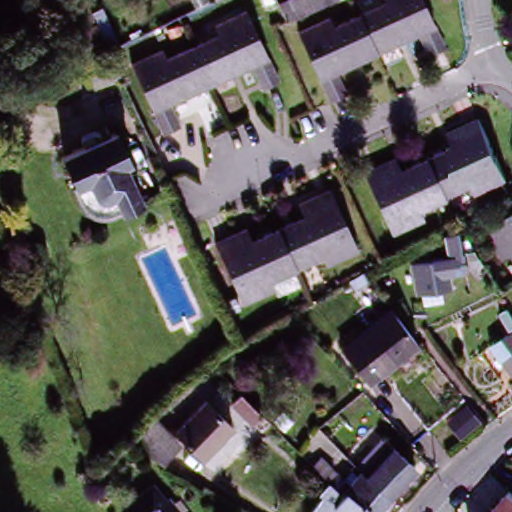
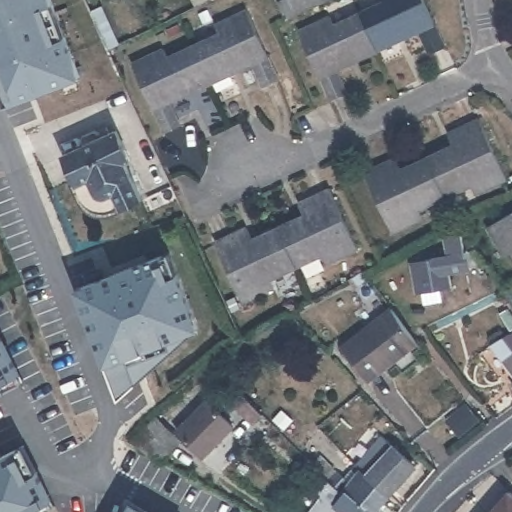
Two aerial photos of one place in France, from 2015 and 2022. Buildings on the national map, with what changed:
new [(0,95),(0,0),(51,0),(80,77),(4,105),(0,95)]
unchanged [(282,0),(327,0),(322,2),(286,19),(285,17),(278,2),(282,0)]
unchanged [(431,61),(422,38),(380,57),(360,10),(382,0),(425,0),(449,54),(431,61)]
demolished [(112,41),(105,44),(79,54),(69,30),(74,27),(68,13),(87,5),(90,11),(94,21),(97,28),(100,32),(107,29),(113,41),(112,41)]
unchanged [(248,9),(279,78),(262,85),(251,62),(210,80),(190,35),(248,9)]
unchanged [(340,75),(348,98),(332,105),(302,36),(360,10),(380,57),(340,75)]
unchanged [(190,35),(210,80),(169,97),(178,122),(162,129),(131,60),(190,35)]
unchanged [(65,149),(102,133),(99,125),(109,120),(112,129),(119,126),(131,152),(125,155),(141,193),(120,201),(121,206),(113,210),(108,211),(104,212),(100,212),(97,212),(93,211),(90,210),(87,207),(83,204),(82,201),(78,196),(68,175),(74,173),(65,149)]
unchanged [(509,180),(478,196),(473,186),(447,199),(429,161),(455,149),(450,137),(480,122),(509,180)]
unchanged [(396,162),(402,175),(429,161),(447,199),(421,211),(426,221),(393,236),(365,177),(396,162)]
unchanged [(331,190),(358,250),(327,262),(322,255),(297,267),(284,239),(279,227),(303,216),(299,205),(331,190)]
unchanged [(489,226),(512,214),(512,255),(507,257),(489,226)]
unchanged [(270,280),(273,288),(242,303),(215,244),(246,230),(251,241),(279,227),(284,239),(297,267),(270,280)]
unchanged [(470,270),(450,274),(452,288),(439,290),(441,303),(423,306),(421,293),(417,294),(411,265),(442,257),(442,253),(447,251),(444,235),(462,231),(464,240),(471,239),(477,249),(479,253),(486,263),(470,266),(470,270)]
new [(192,332),(139,380),(119,399),(104,364),(76,289),(162,255),(170,253),(178,273),(200,328),(192,332)]
unchanged [(512,326),(510,327),(500,310),(509,305),(512,310),(512,326)]
unchanged [(418,342),(369,381),(342,346),(391,308),(418,342)]
unchanged [(512,328),(512,369),(491,343),(512,328)]
new [(20,375),(23,382),(6,390),(0,393),(0,336),(20,375)]
unchanged [(512,381),(512,390),(508,385),(512,381)]
unchanged [(255,407),(262,414),(255,421),(233,400),(240,392),(255,407)]
unchanged [(211,397),(238,422),(208,452),(182,427),(211,397)]
unchanged [(279,408),(292,420),(284,427),(272,417),(279,408)]
unchanged [(159,412),(185,438),(168,457),(136,435),(159,412)]
unchanged [(328,496),(329,495),(327,493),(337,480),(343,473),(351,480),(362,467),(366,470),(381,453),(385,449),(388,446),(400,433),(430,461),(412,481),(396,499),(385,512),(349,512),(339,503),(331,512),(316,512),(321,505),(328,496)]
new [(46,512),(0,512),(0,458),(16,450),(24,446),(37,472),(52,502),(54,507),(46,512)]
unchanged [(324,466),(322,465),(321,463),(328,456),(341,470),(334,477),(324,466)]
demolished [(123,506),(157,482),(170,498),(180,512),(128,512),(123,506)]
unchanged [(509,490),(512,493),(512,512),(489,512),(509,490)]
new [(132,500),(151,512),(126,512),(132,500)]

